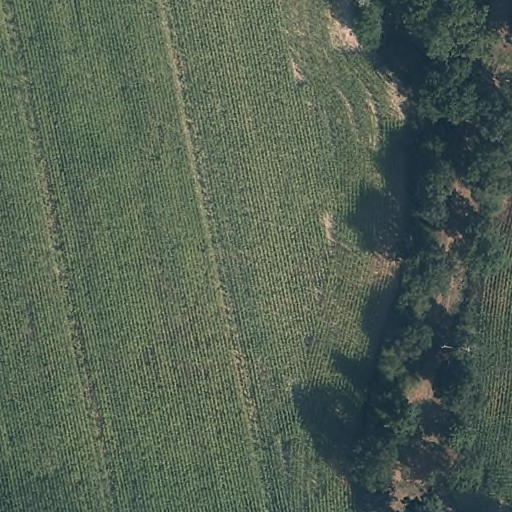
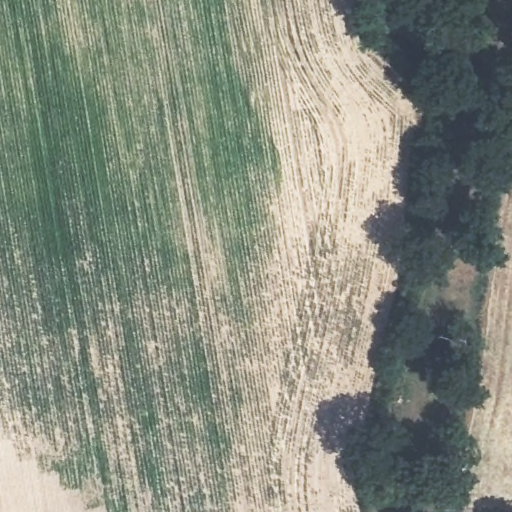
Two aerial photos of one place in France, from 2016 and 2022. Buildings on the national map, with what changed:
[]

